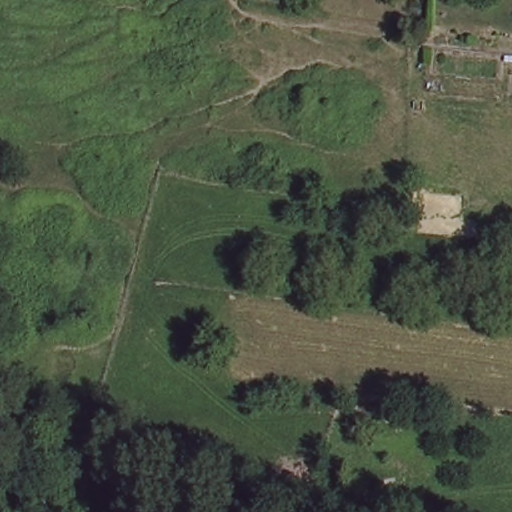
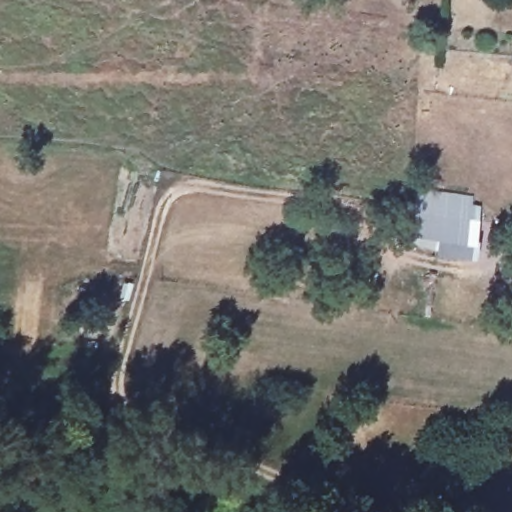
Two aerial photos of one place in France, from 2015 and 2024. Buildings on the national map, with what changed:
new [(415,188),(474,195),(473,203),(481,204),(475,261),(435,258),(435,249),(408,244),(415,188)]

